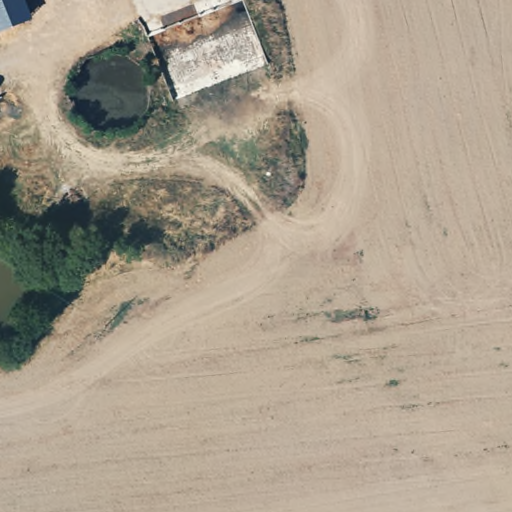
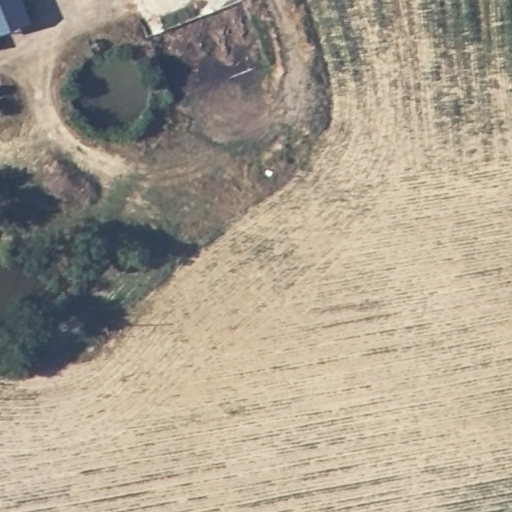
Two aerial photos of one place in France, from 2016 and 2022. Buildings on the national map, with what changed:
unchanged [(0,30),(0,0),(21,0),(29,20),(0,30)]

